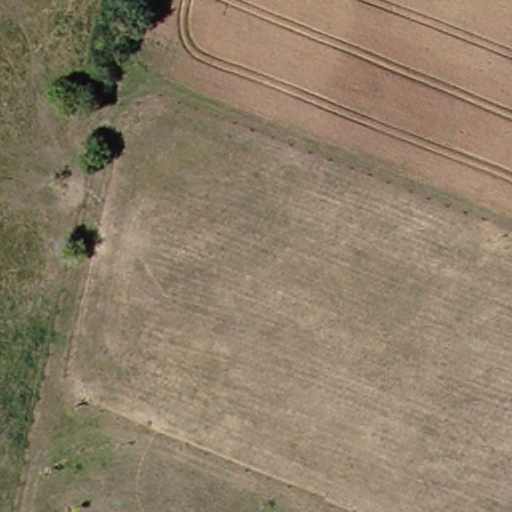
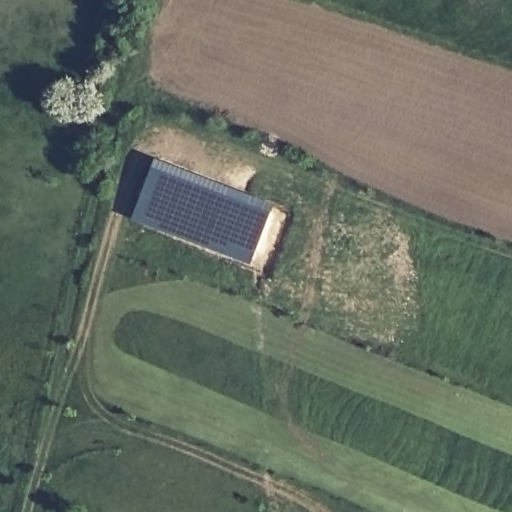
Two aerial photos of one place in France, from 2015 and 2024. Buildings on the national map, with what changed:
new [(157,159),(275,204),(251,265),(133,219),(157,159)]

